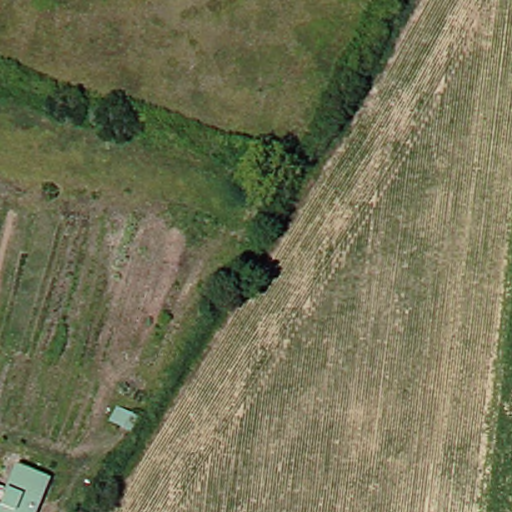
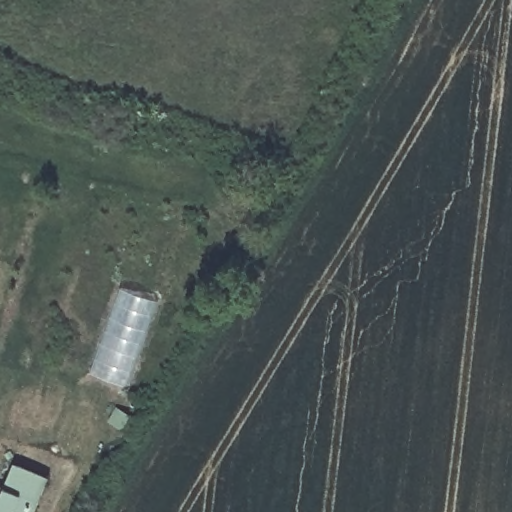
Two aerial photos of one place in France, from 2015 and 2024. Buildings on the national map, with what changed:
new [(95,373),(121,290),(157,300),(132,385),(95,373)]
unchanged [(27,465),(57,483),(40,512),(1,512),(27,465)]

